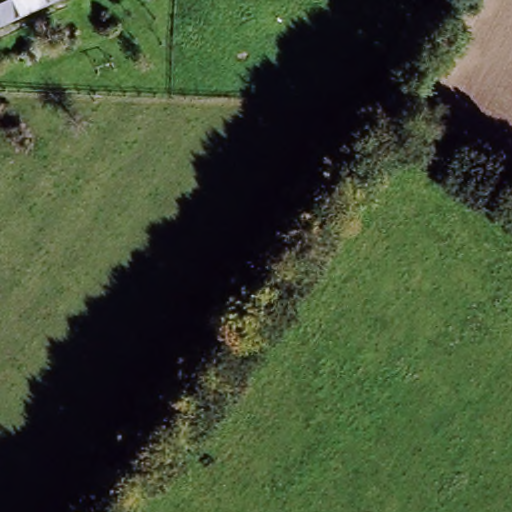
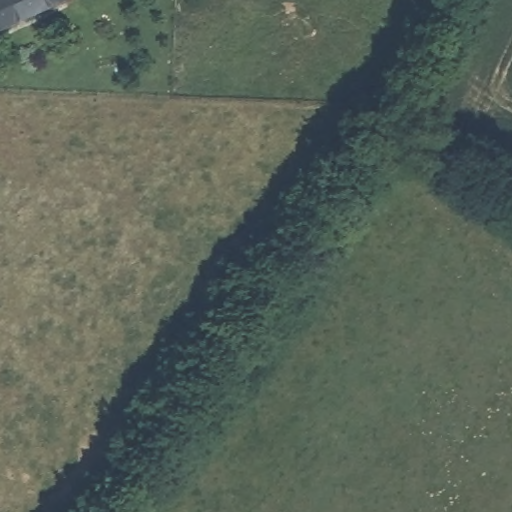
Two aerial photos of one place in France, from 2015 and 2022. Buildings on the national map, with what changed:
unchanged [(78,0),(74,1),(0,29),(0,0),(78,0)]

